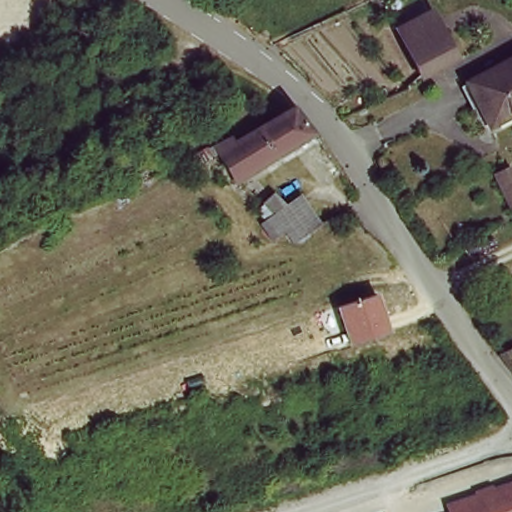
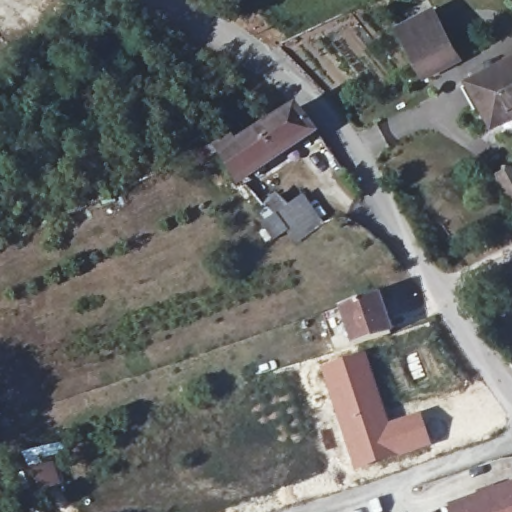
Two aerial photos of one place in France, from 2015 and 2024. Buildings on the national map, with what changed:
unchanged [(427,70),(405,27),(440,10),(461,52),(427,70)]
unchanged [(465,77),(512,52),(512,100),(484,115),(465,77)]
unchanged [(242,177),(217,144),(216,142),(238,130),(243,137),(297,102),(316,129),(244,175),(242,177)]
unchanged [(512,217),(510,218),(492,186),(506,177),(512,187),(512,217)]
unchanged [(316,219),(321,225),(296,235),(295,234),(263,205),(273,198),(289,212),(301,199),(316,219)]
unchanged [(350,345),(338,307),(378,295),(391,332),(350,345)]
new [(386,429),(418,418),(426,445),(355,467),(323,371),(362,357),(386,429)]
unchanged [(446,502),(512,478),(512,512),(449,512),(446,502)]

